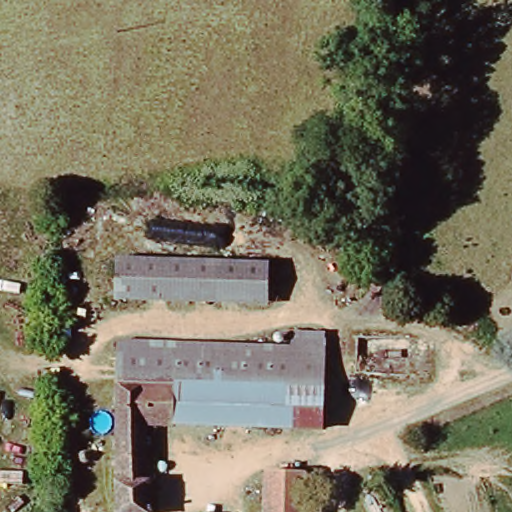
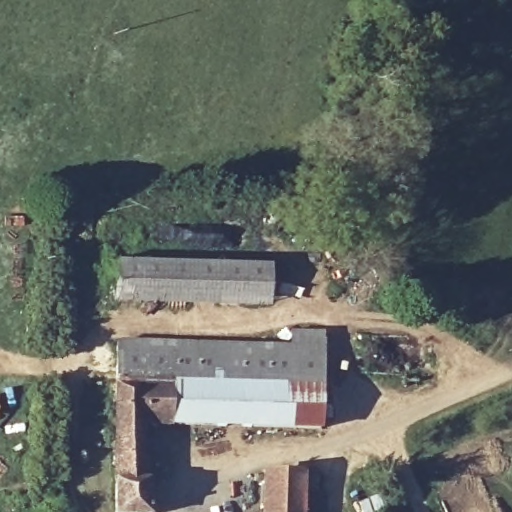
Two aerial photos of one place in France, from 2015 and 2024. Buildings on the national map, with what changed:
unchanged [(117,251),(267,260),(265,300),(115,293),(117,251)]
unchanged [(325,336),(325,350),(340,351),(339,428),(151,426),(151,512),(111,512),(114,346),(293,348),(294,335),(325,336)]
unchanged [(266,512),(265,470),(305,469),(306,512),(266,512)]

